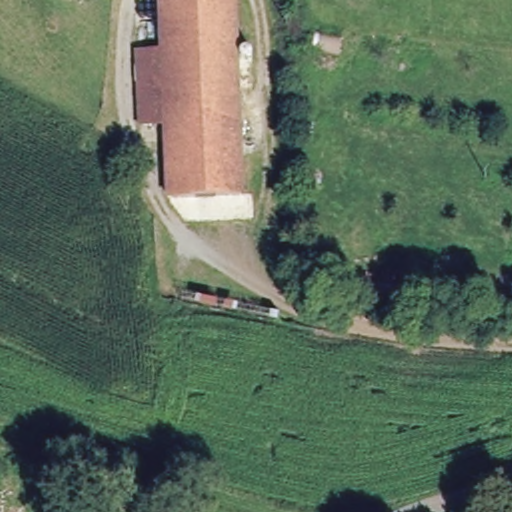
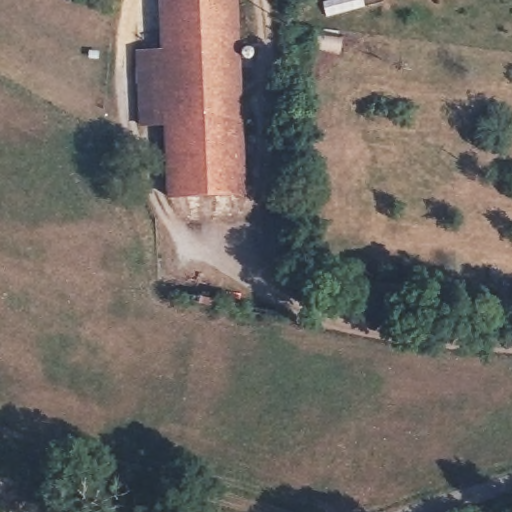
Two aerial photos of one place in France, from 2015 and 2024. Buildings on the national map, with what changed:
unchanged [(238,0),(248,194),(226,194),(172,196),(170,169),(162,0),(238,0)]
unchanged [(165,127),(138,129),(135,48),(162,47),(165,127)]

